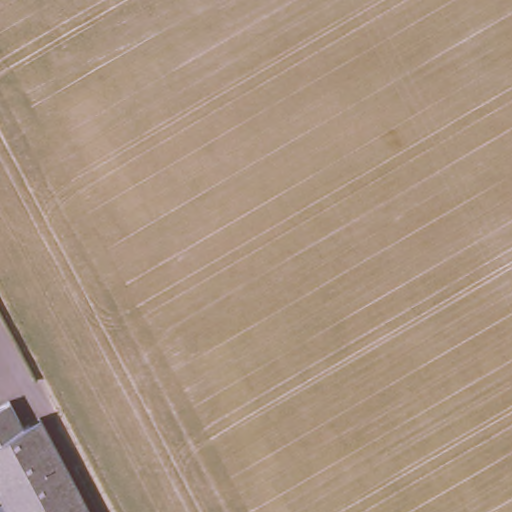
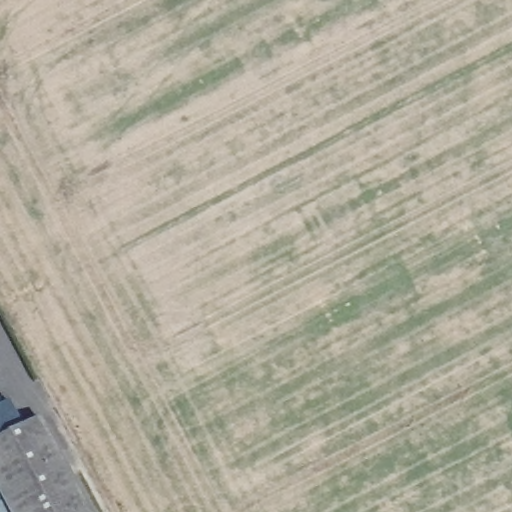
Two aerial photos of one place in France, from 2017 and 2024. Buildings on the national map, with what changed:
unchanged [(8,389),(24,420),(0,431),(0,393),(8,389)]
unchanged [(24,420),(40,412),(95,512),(16,512),(0,482),(0,431),(24,420)]

